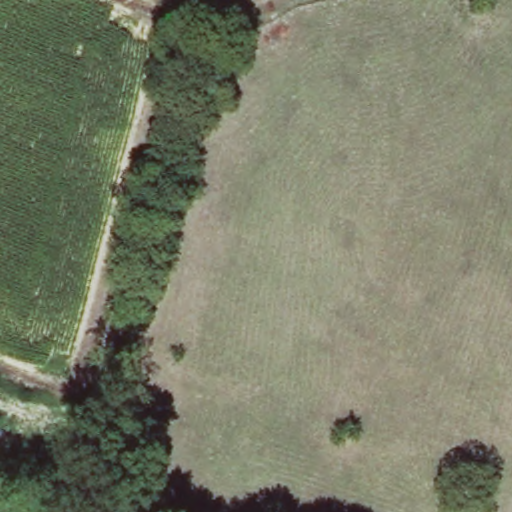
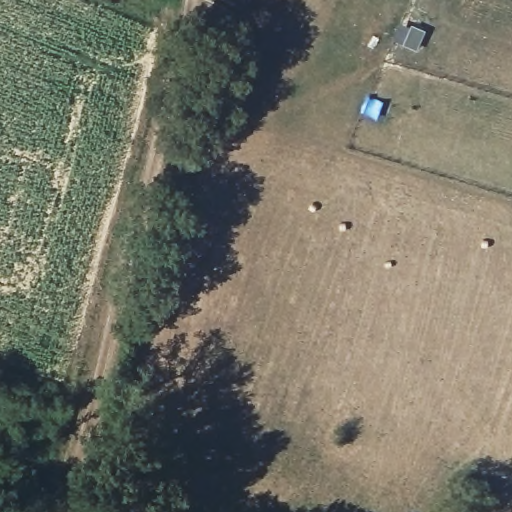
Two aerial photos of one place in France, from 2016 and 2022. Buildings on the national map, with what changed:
[]

